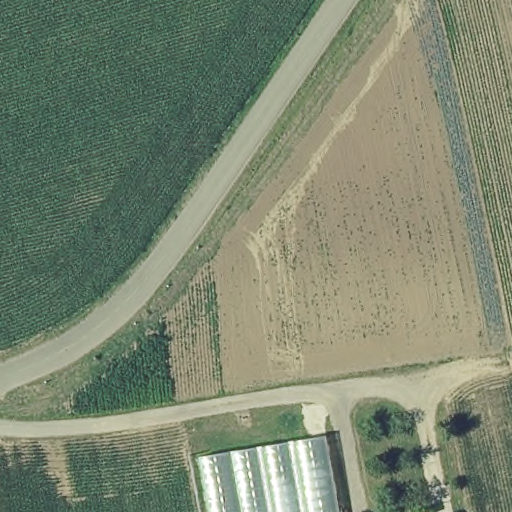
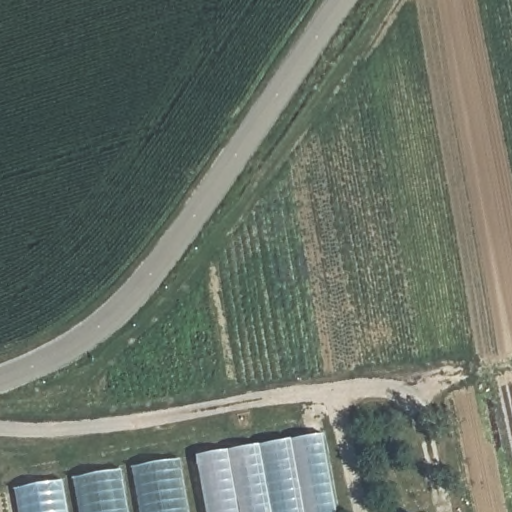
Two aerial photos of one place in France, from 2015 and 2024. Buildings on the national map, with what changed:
unchanged [(198,456),(325,434),(340,512),(209,512),(198,456)]
new [(191,512),(79,512),(73,478),(181,459),(191,512)]

